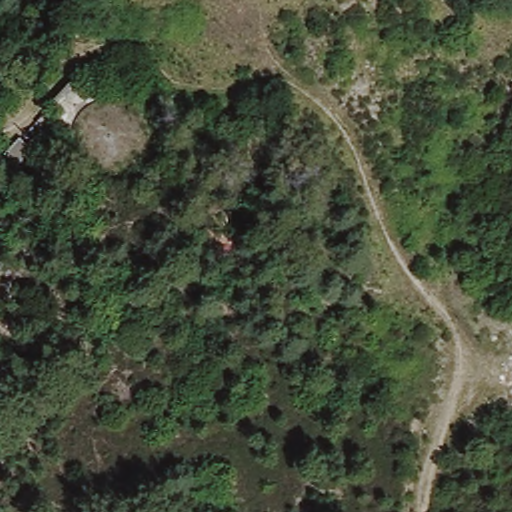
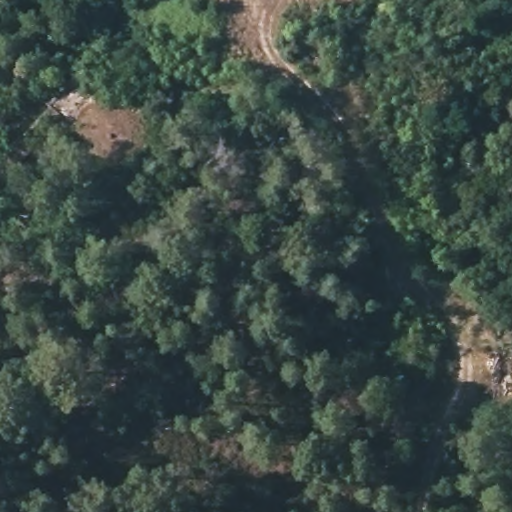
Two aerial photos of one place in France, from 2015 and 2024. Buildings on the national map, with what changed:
unchanged [(36,151),(19,172),(1,153),(19,135),(36,151)]

